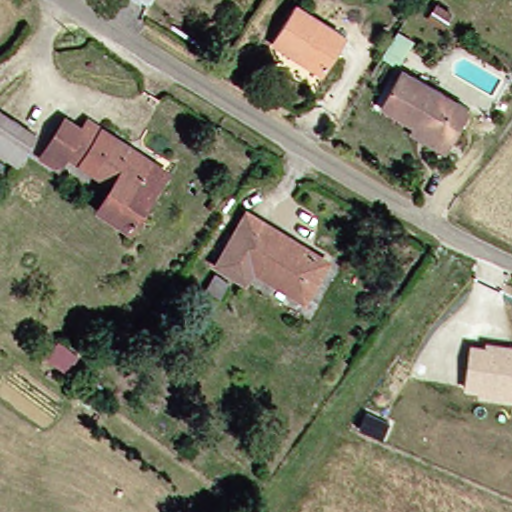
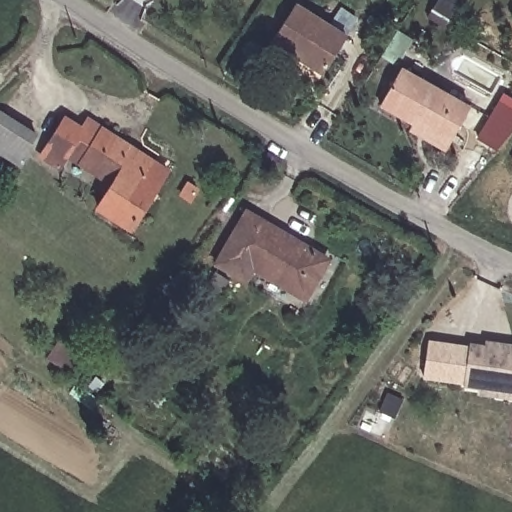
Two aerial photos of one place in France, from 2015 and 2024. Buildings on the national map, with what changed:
unchanged [(294,0),(299,0),(345,28),(322,65),(273,35),(294,0)]
unchanged [(407,124),(410,119),(381,101),(401,66),(467,103),(450,134),(444,145),(407,124)]
new [(495,150),(476,138),(503,92),(512,97),(512,131),(495,150)]
unchanged [(17,158),(0,148),(0,106),(10,112),(35,127),(17,158)]
unchanged [(148,194),(131,221),(99,201),(111,178),(66,150),(59,160),(41,149),(64,112),(79,122),(87,112),(154,153),(167,162),(148,194)]
unchanged [(330,253),(307,290),(257,261),(249,274),(216,256),(246,203),(264,214),(330,253)]
unchanged [(480,384),(465,382),(470,341),(485,343),(485,338),(511,342),(512,342),(512,394),(480,389),(480,384)]
new [(428,339),(470,345),(465,382),(465,385),(422,378),(428,339)]
unchanged [(374,412),(397,422),(390,438),(367,428),(374,412)]

